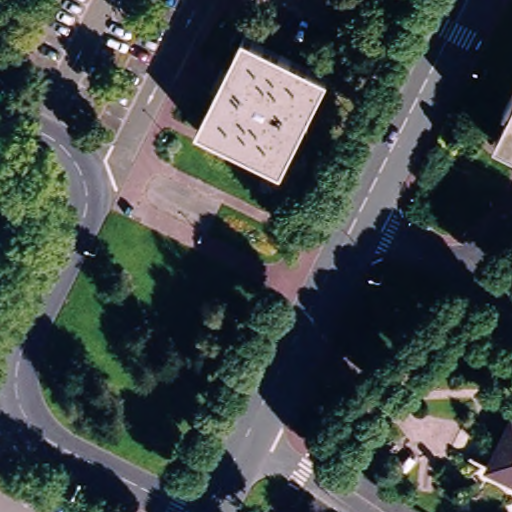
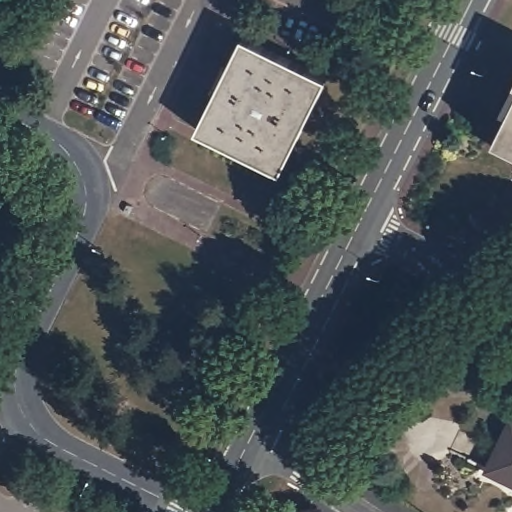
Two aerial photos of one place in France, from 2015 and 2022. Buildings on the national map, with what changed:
unchanged [(282,172),(197,131),(244,37),(327,79),(282,172)]
unchanged [(510,112),(512,108),(512,148),(496,140),(510,112)]
unchanged [(512,428),(512,474),(493,466),(512,428)]

